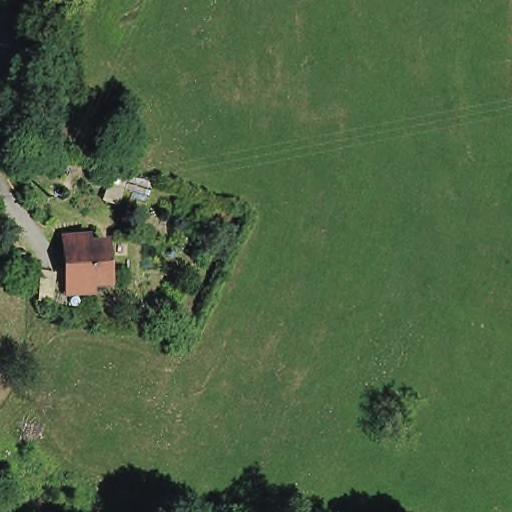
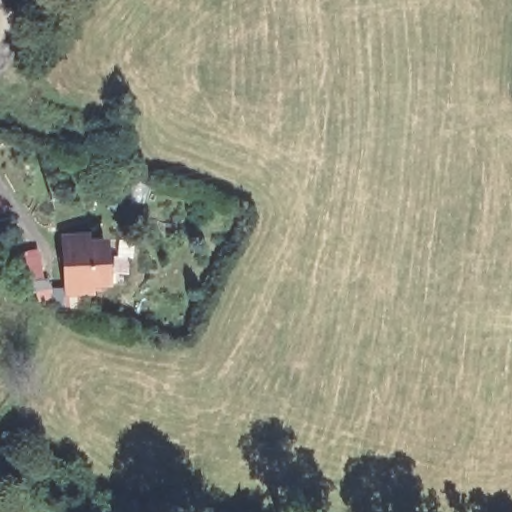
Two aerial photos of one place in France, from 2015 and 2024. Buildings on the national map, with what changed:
unchanged [(69,250),(68,241),(90,239),(91,247),(108,246),(109,261),(110,283),(93,284),(94,293),(71,294),(71,285),(69,250)]
unchanged [(51,300),(43,299),(43,273),(55,274),(58,274),(56,301),(51,300)]
unchanged [(144,296),(161,300),(154,325),(138,322),(144,296)]

